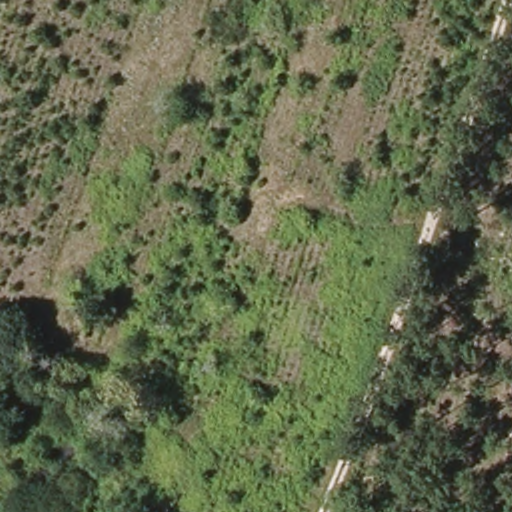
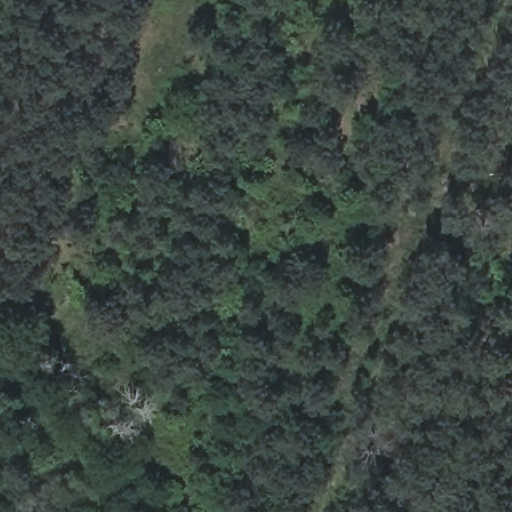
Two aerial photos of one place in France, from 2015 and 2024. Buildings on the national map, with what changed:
unchanged [(168,512),(141,512),(147,493),(172,502),(168,512)]

